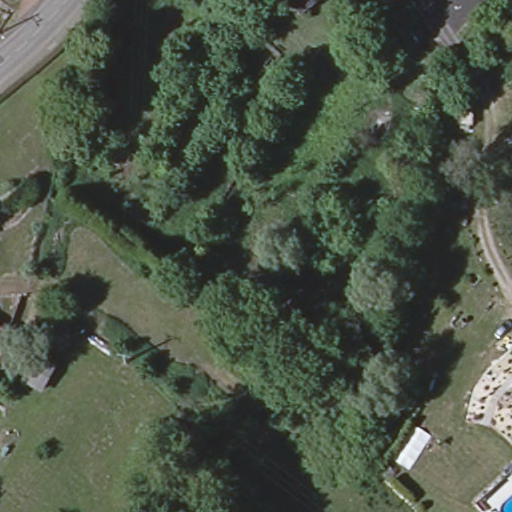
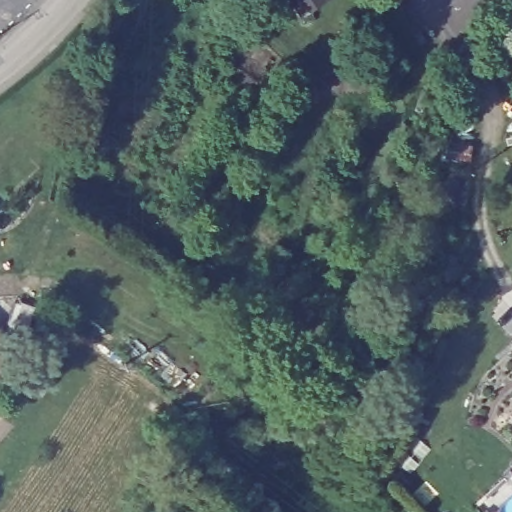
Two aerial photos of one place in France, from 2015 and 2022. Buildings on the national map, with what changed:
unchanged [(318,0),(296,15),(286,0),(318,0)]
unchanged [(0,358),(0,326),(8,334),(0,358)]

